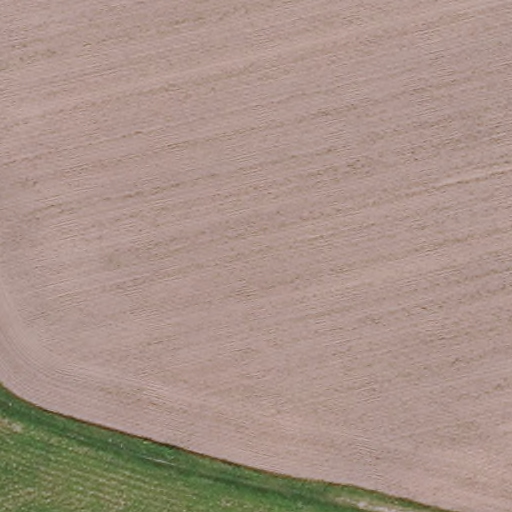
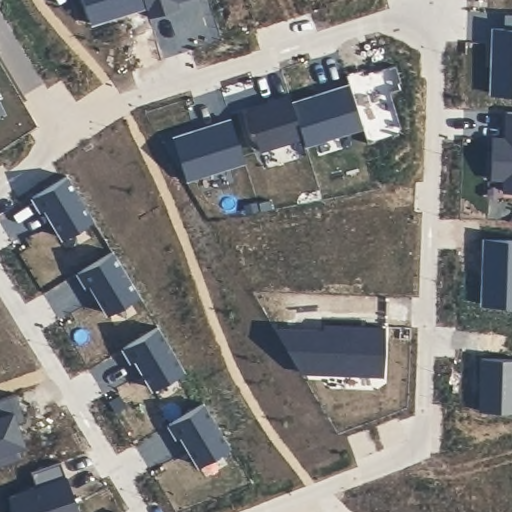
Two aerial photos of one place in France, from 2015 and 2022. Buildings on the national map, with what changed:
new [(144,6),(89,24),(81,0),(142,0),(144,6)]
new [(166,2),(169,9),(148,16),(144,6),(142,0),(175,0),(166,2)]
new [(491,29),(501,29),(512,29),(512,95),(489,94),(491,29)]
new [(361,70),(362,75),(394,65),(399,82),(397,82),(398,89),(388,92),(399,129),(396,135),(366,145),(361,127),(347,85),(344,75),(361,70)]
new [(347,85),(361,127),(304,145),(301,137),(290,103),(347,85)]
new [(288,95),(290,103),(301,137),(259,150),(246,109),(288,95)]
new [(491,139),(504,139),(504,112),(512,113),(512,192),(502,192),(502,180),(489,179),(491,139)]
new [(230,121),(243,162),(186,180),(173,139),(230,121)]
new [(66,177),(91,220),(61,238),(43,209),(39,212),(31,199),(66,177)]
new [(483,240),(512,241),(512,305),(481,305),(483,240)]
new [(111,252),(137,295),(106,313),(89,285),(85,287),(76,273),(111,252)]
new [(322,332),(323,327),(383,330),(381,376),(299,373),(274,330),(322,332)]
new [(156,328),(182,370),(151,389),(134,360),(130,362),(122,348),(156,328)]
new [(481,359),(512,360),(512,413),(478,411),(481,359)]
new [(23,422),(15,425),(11,432),(16,448),(21,460),(0,467),(0,400),(14,395),(23,422)]
new [(202,403),(228,446),(198,465),(180,436),(176,438),(168,425),(202,403)]
new [(29,473),(59,463),(76,512),(13,512),(8,498),(35,489),(29,473)]

